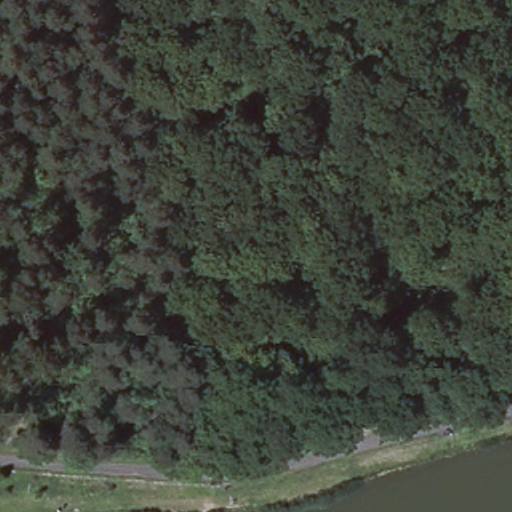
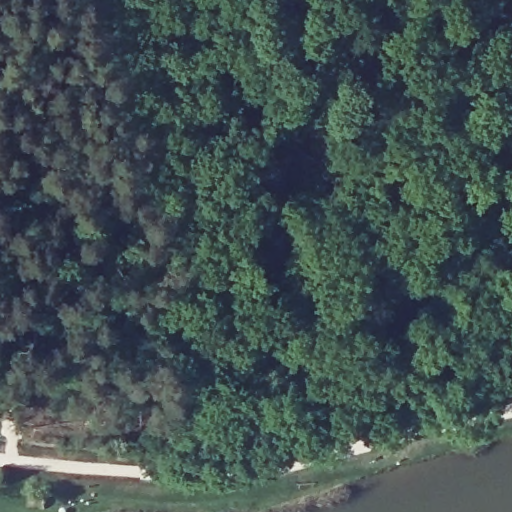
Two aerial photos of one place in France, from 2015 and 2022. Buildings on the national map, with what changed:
[]

